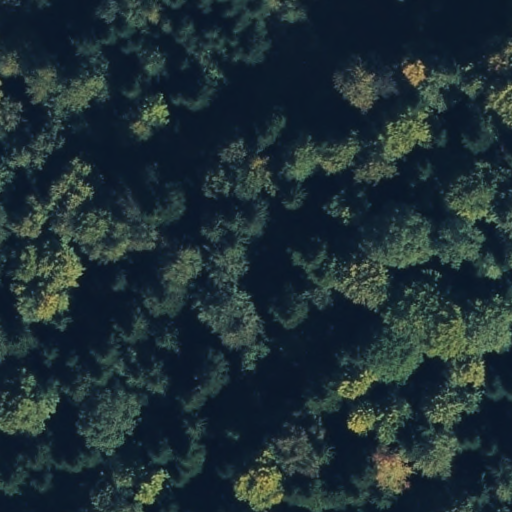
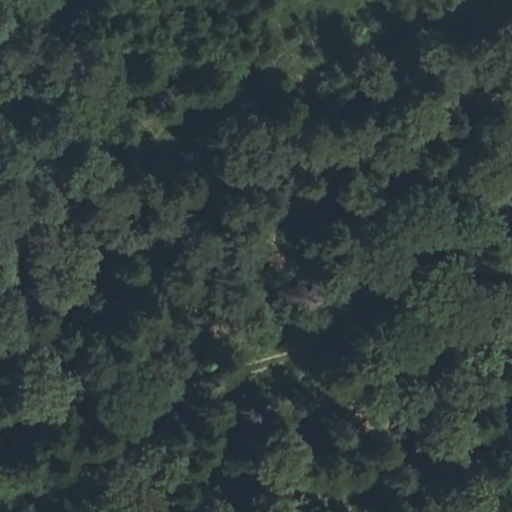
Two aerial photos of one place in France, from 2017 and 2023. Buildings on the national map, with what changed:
[]

